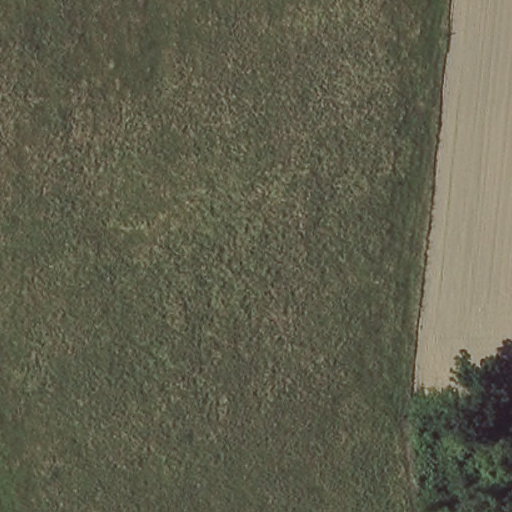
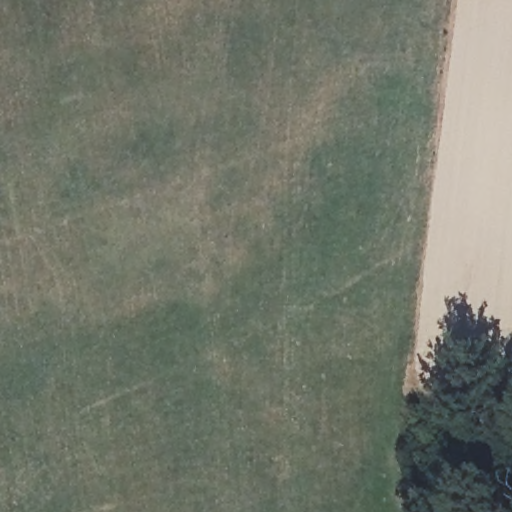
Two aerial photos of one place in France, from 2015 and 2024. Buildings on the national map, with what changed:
[]

